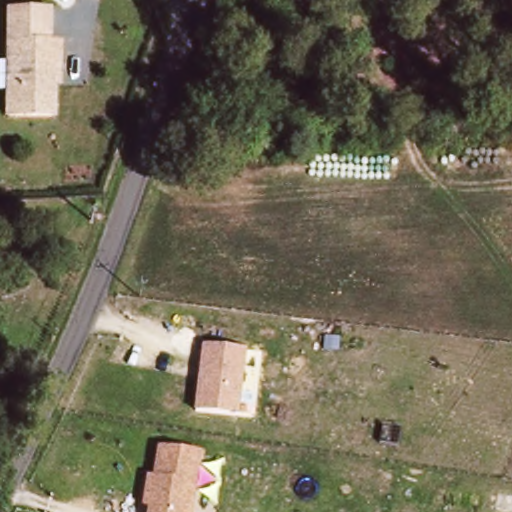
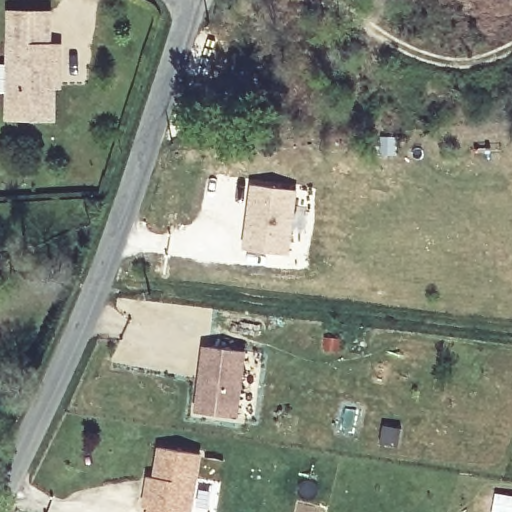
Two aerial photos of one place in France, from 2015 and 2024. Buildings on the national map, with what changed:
unchanged [(9,8),(54,7),(55,42),(10,42),(9,8)]
unchanged [(10,116),(10,42),(55,42),(62,42),(62,64),(63,82),(57,83),(57,117),(10,116)]
new [(258,180),(302,186),(294,250),(250,245),(258,180)]
unchanged [(235,415),(194,409),(198,376),(202,375),(205,343),(243,347),(235,415)]
unchanged [(143,507),(148,476),(156,476),(161,445),(204,451),(195,512),(150,512),(151,509),(143,507)]

